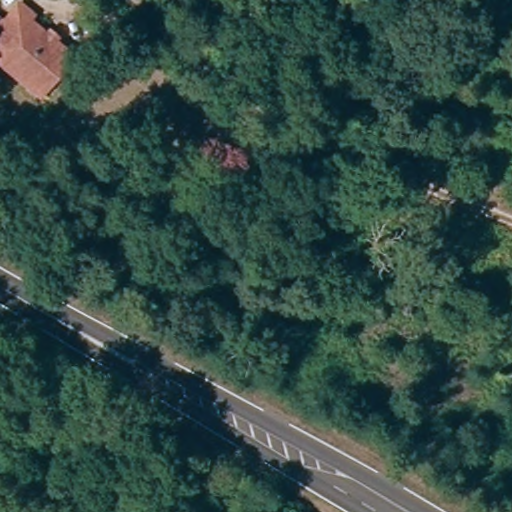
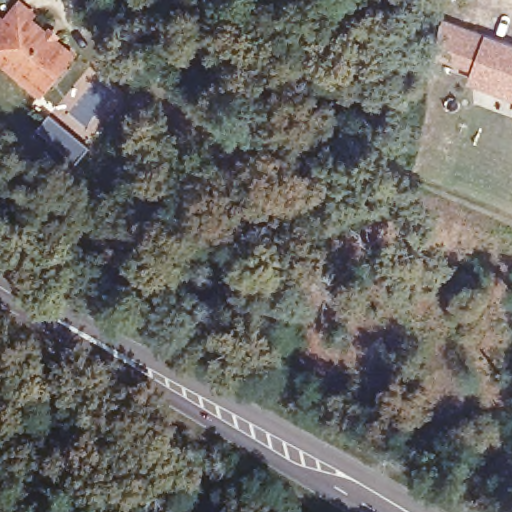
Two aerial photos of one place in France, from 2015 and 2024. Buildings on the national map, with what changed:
unchanged [(37,101),(27,94),(0,69),(0,19),(6,25),(22,7),(35,19),(31,24),(63,54),(73,61),(37,101)]
new [(472,72),(422,52),(435,17),(512,45),(512,101),(467,85),(472,72)]

